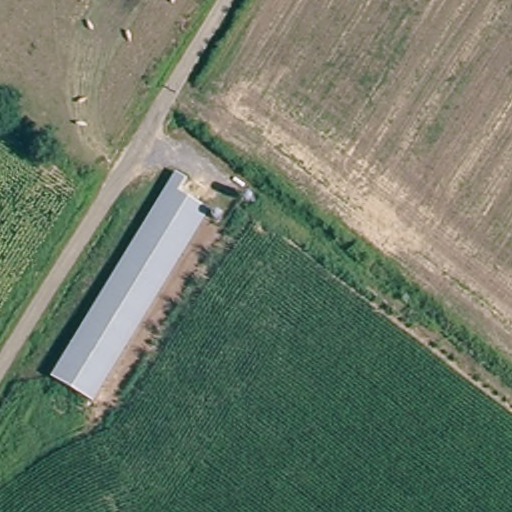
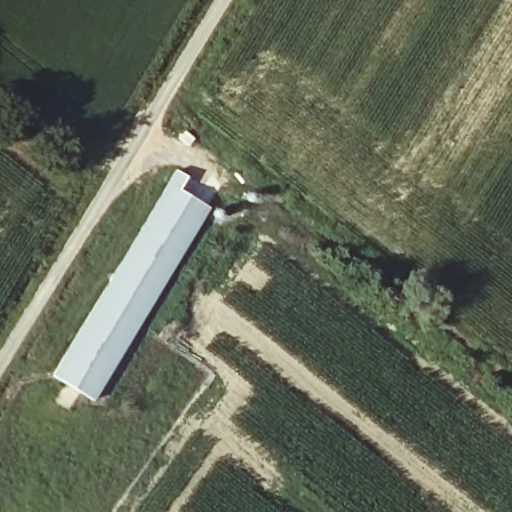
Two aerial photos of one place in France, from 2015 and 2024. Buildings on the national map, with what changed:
unchanged [(193,175),(184,191),(214,209),(98,397),(56,372),(182,169),(193,175)]

